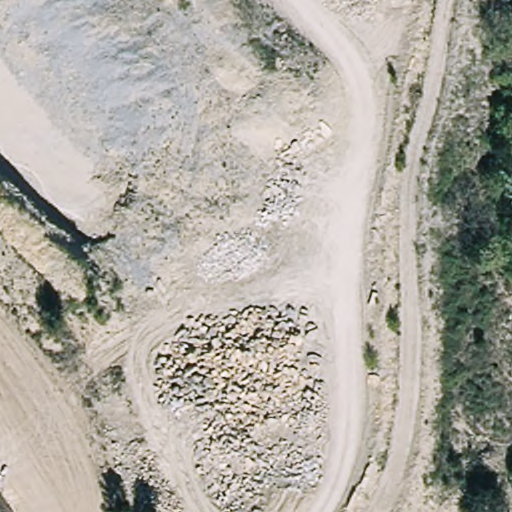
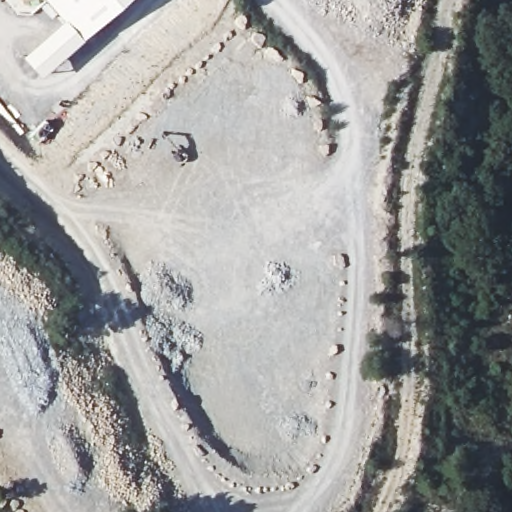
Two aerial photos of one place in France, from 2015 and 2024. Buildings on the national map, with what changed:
new [(41,78),(21,55),(61,19),(44,0),(126,0),(41,78)]

